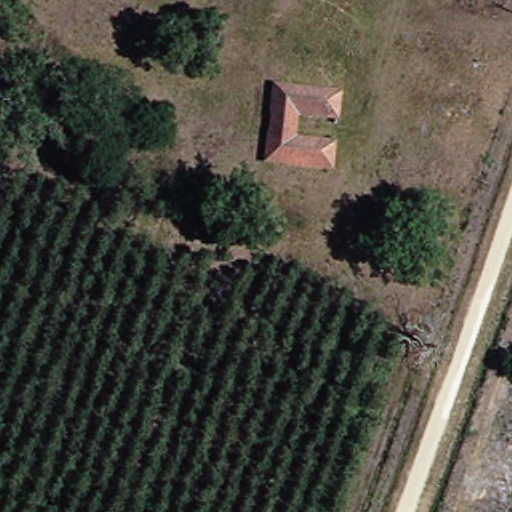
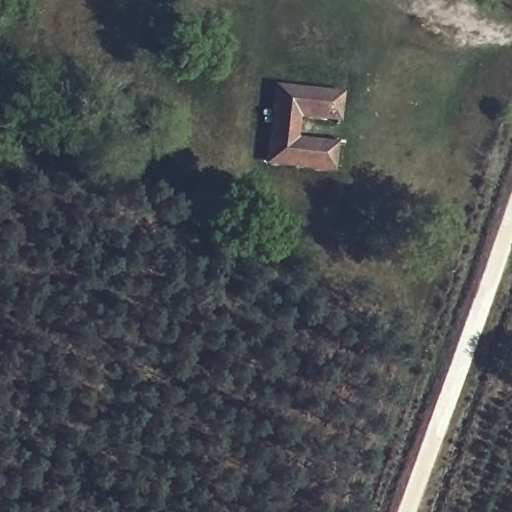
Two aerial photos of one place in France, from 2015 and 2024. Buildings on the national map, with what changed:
unchanged [(322,160),(264,155),(273,82),(332,91),(322,160)]

